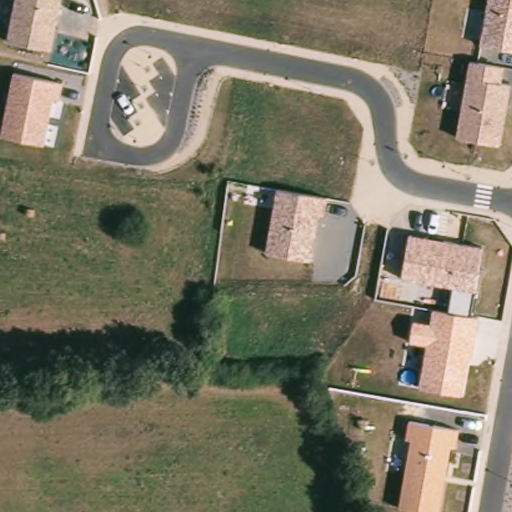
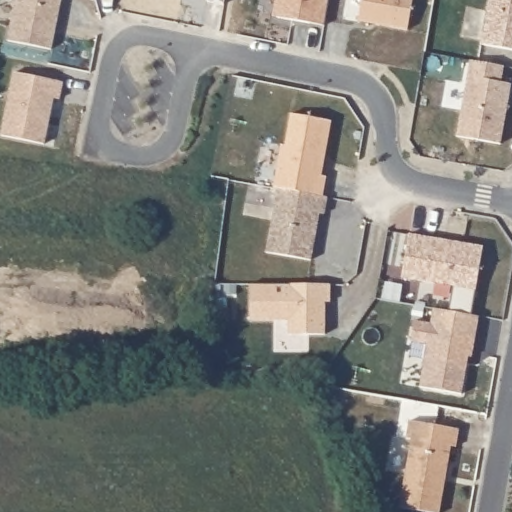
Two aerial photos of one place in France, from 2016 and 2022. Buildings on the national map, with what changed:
unchanged [(7,42),(16,0),(62,0),(52,51),(7,42)]
new [(275,0),(328,0),(323,27),(271,17),(275,0)]
new [(413,0),(408,30),(359,22),(362,0),(413,0)]
unchanged [(488,0),(512,0),(512,50),(480,45),(488,0)]
unchanged [(501,83),(511,85),(501,146),(457,139),(469,60),(504,66),(501,83)]
unchanged [(60,101),(53,100),(45,146),(0,137),(13,72),(63,83),(60,101)]
new [(321,177),(326,177),(323,197),(278,189),(273,188),(280,146),(285,147),(292,114),(332,122),(321,177)]
unchanged [(326,216),(320,215),(313,262),(266,255),(278,189),(329,197),(326,216)]
unchanged [(419,388),(426,345),(410,343),(413,321),(430,325),(432,310),(448,313),(453,288),(402,280),(409,234),(482,247),(476,292),(472,292),(468,315),(478,317),(472,357),(467,357),(461,396),(419,388)]
new [(249,285),(330,285),(330,302),(325,303),(325,334),(289,335),(288,321),(250,321),(249,285)]
unchanged [(456,450),(450,449),(441,512),(421,512),(399,508),(410,441),(406,440),(410,421),(459,430),(456,450)]

